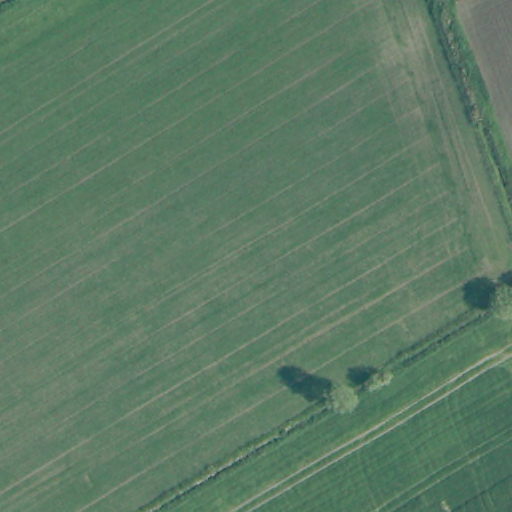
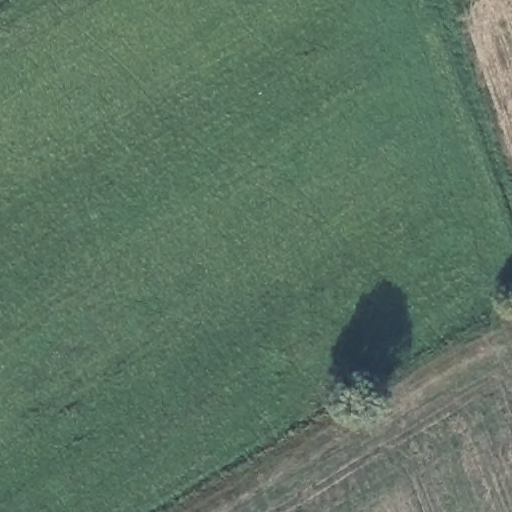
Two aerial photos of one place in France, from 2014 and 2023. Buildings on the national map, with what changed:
[]

